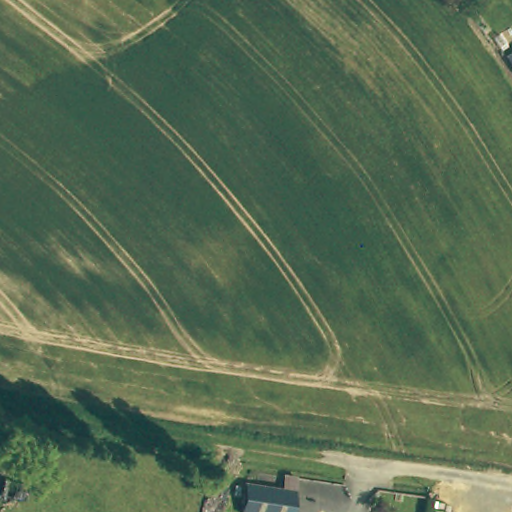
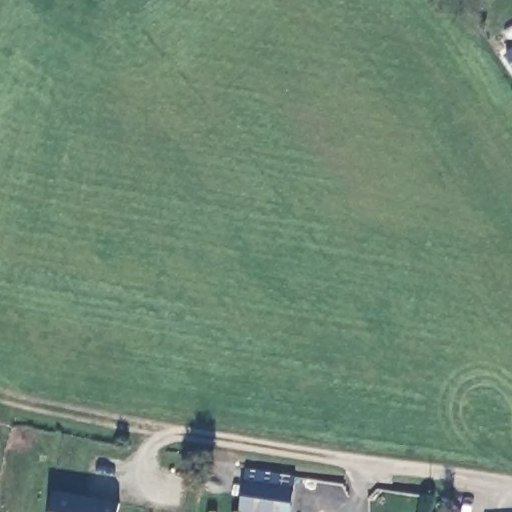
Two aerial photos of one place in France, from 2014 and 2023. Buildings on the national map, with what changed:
unchanged [(511,57),(512,57),(512,59),(511,57)]
unchanged [(292,492),(289,512),(240,512),(244,485),(292,492)]
new [(56,493),(85,497),(84,500),(105,503),(106,501),(123,503),(121,512),(53,512),(56,493)]

